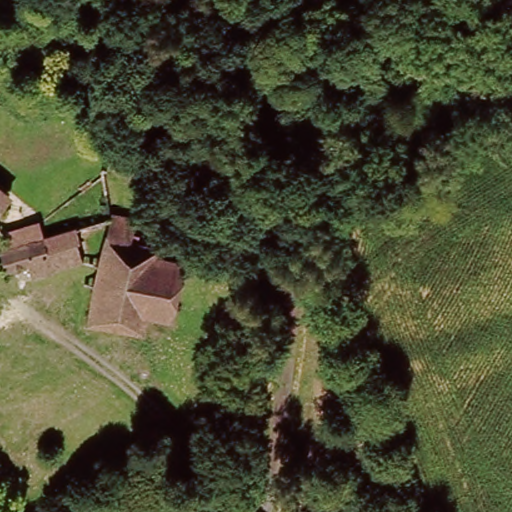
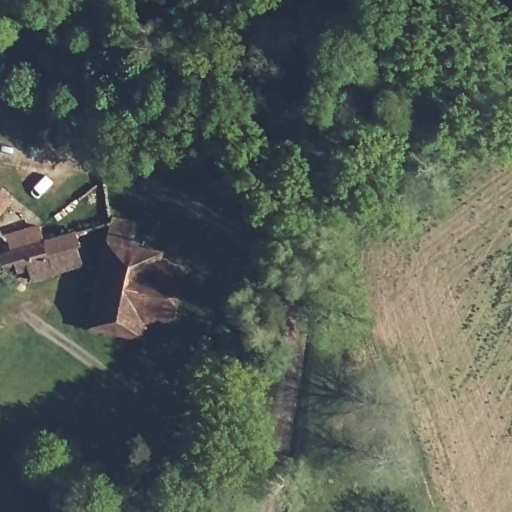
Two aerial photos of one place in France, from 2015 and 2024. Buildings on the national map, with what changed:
unchanged [(0,216),(0,188),(12,198),(0,216)]
unchanged [(9,247),(4,234),(40,223),(42,240),(9,247)]
unchanged [(173,272),(163,328),(137,325),(135,340),(87,332),(105,227),(129,231),(125,250),(154,255),(152,268),(173,272)]
unchanged [(52,278),(33,281),(30,267),(7,272),(0,249),(42,240),(42,244),(76,236),(79,246),(73,247),(79,267),(50,273),(52,278)]

